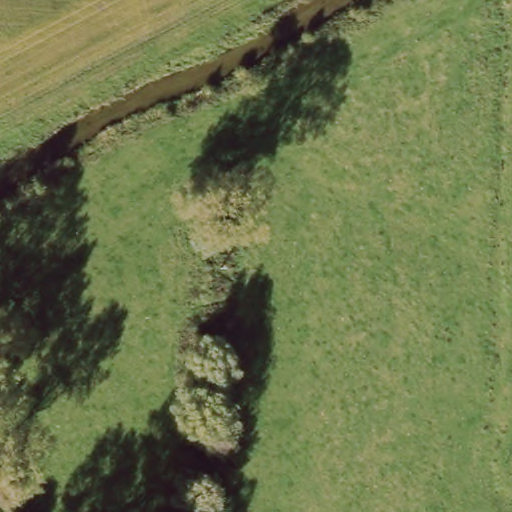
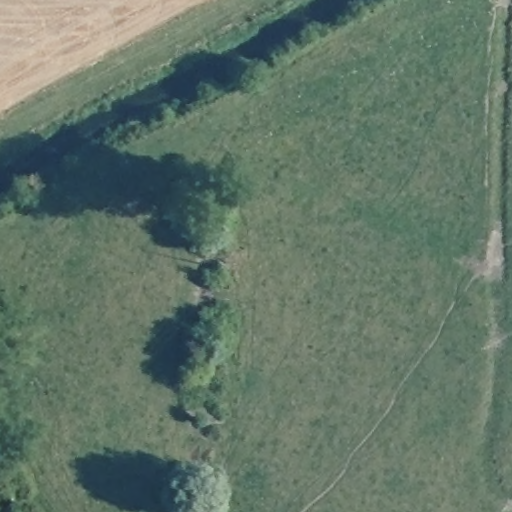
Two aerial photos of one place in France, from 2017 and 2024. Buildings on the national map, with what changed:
[]

